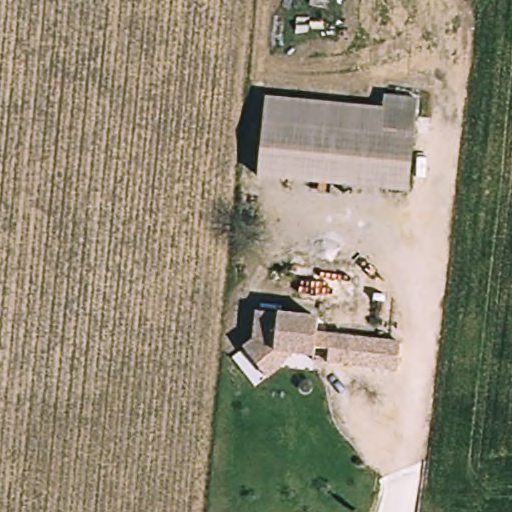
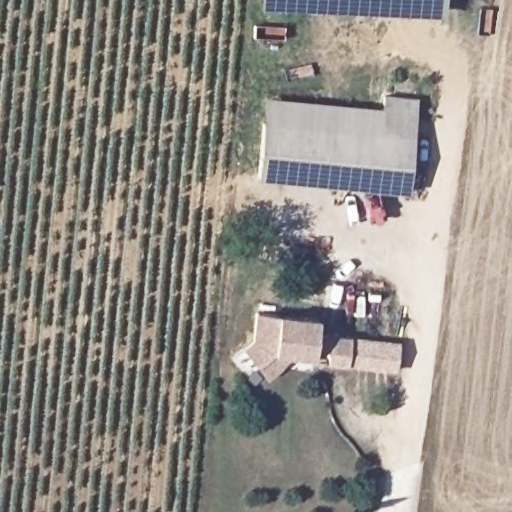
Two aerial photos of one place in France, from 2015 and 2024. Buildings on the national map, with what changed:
new [(442,0),(442,15),(263,8),(263,0),(442,0)]
unchanged [(383,141),(386,111),(387,97),(420,100),(415,145),(383,141)]
unchanged [(270,99),(386,111),(383,141),(415,145),(411,192),(262,176),(268,129),(270,99)]
unchanged [(310,365),(309,357),(274,354),(255,368),(240,348),(250,341),(253,315),(313,321),(312,337),(395,345),(392,372),(310,365)]

